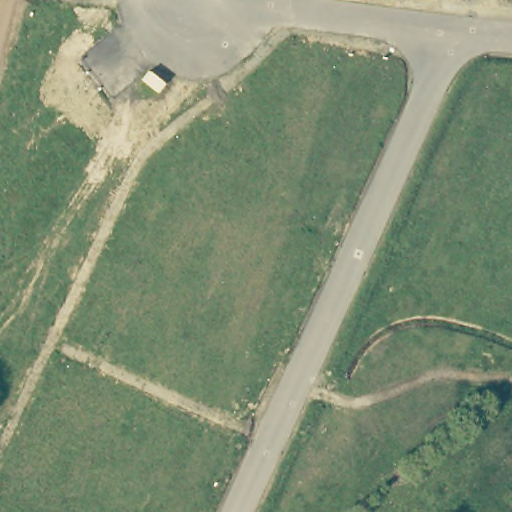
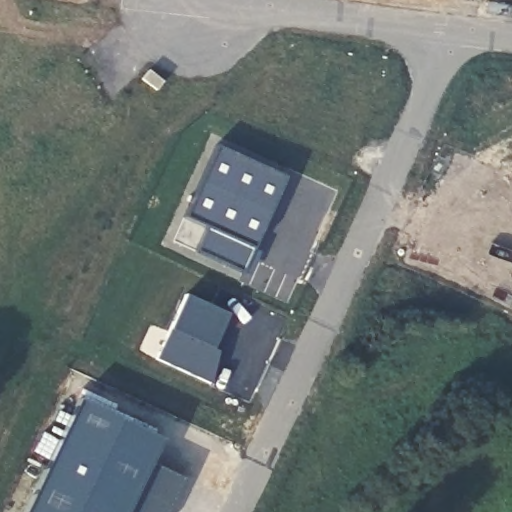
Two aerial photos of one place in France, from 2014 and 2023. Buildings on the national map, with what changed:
new [(151,74),(165,85),(159,93),(144,82),(151,74)]
new [(219,148),(289,181),(245,277),(198,255),(209,231),(185,221),(219,148)]
new [(188,298),(231,318),(215,352),(221,355),(214,387),(159,362),(188,298)]
new [(164,443),(154,466),(187,482),(172,512),(28,512),(80,403),(164,443)]

